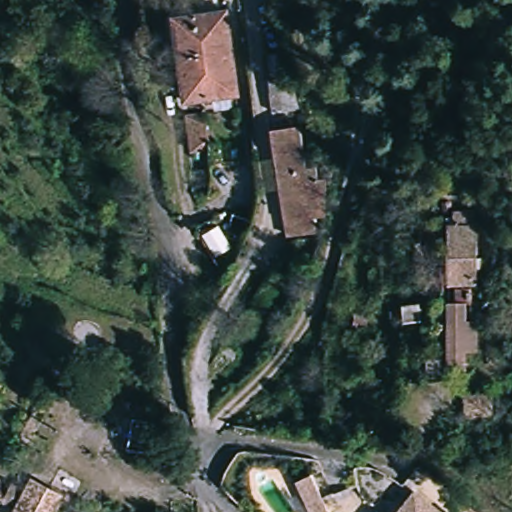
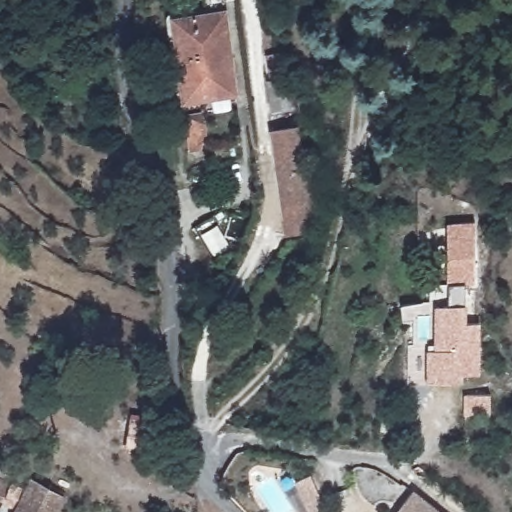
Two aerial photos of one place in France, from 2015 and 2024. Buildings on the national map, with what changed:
unchanged [(207,13),(226,10),(232,55),(237,94),(185,100),(175,16),(207,13)]
unchanged [(209,112),(214,147),(196,150),(192,115),(209,112)]
unchanged [(314,215),(316,235),(289,238),(266,131),(293,125),(302,162),(310,161),(315,175),(328,176),(326,213),(314,215)]
unchanged [(449,211),(465,211),(466,223),(477,224),(475,282),(449,283),(449,211)]
new [(427,384),(427,350),(435,350),(434,306),(449,306),(449,283),(465,283),(466,323),(480,324),(479,375),(461,375),(461,383),(427,384)]
demolished [(465,302),(466,322),(480,323),(479,350),(464,350),(463,369),(448,368),(447,300),(465,302)]
unchanged [(466,396),(494,395),(493,418),(466,419),(466,396)]
unchanged [(77,485),(75,488),(63,512),(34,512),(15,502),(22,485),(0,477),(0,462),(28,472),(28,475),(34,476),(42,467),(77,485)]
unchanged [(334,510),(336,512),(316,512),(314,505),(303,480),(319,473),(334,510)]
unchanged [(417,500),(433,512),(402,512),(413,496),(417,500)]
unchanged [(11,512),(0,512),(0,509),(11,512)]

